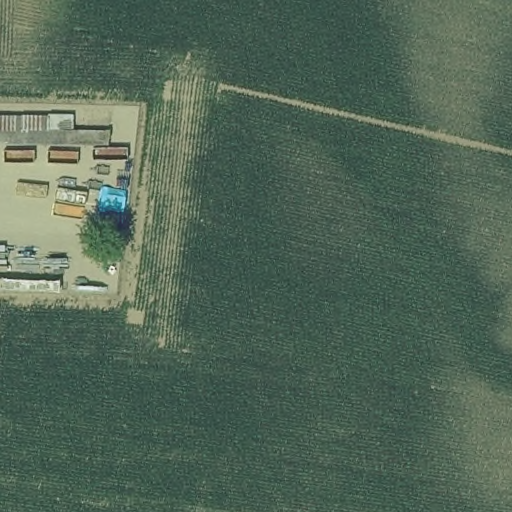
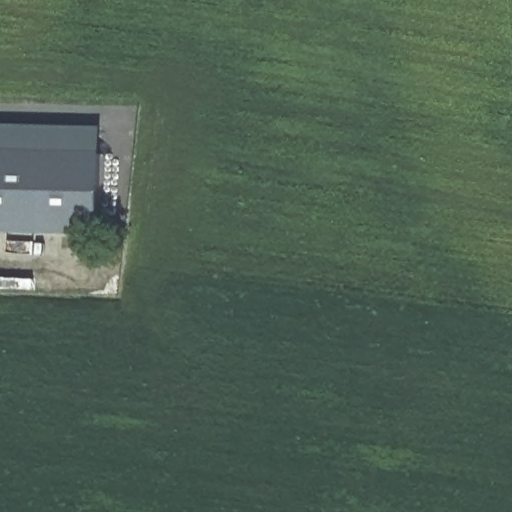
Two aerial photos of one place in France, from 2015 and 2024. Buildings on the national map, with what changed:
demolished [(62,110),(63,133),(0,134),(0,112),(62,110)]
new [(101,129),(98,235),(0,233),(0,127),(101,129)]

